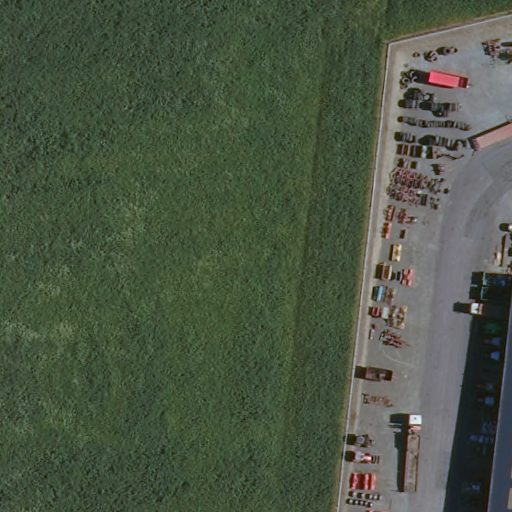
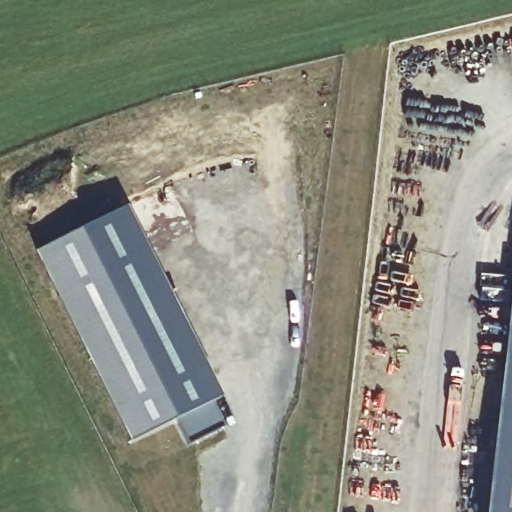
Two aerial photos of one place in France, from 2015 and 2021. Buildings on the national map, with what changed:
new [(130,202),(225,393),(216,397),(180,415),(136,437),(40,247),(130,202)]
unchanged [(512,333),(512,512),(492,512),(512,333)]
new [(216,397),(229,423),(192,440),(180,415),(216,397)]

